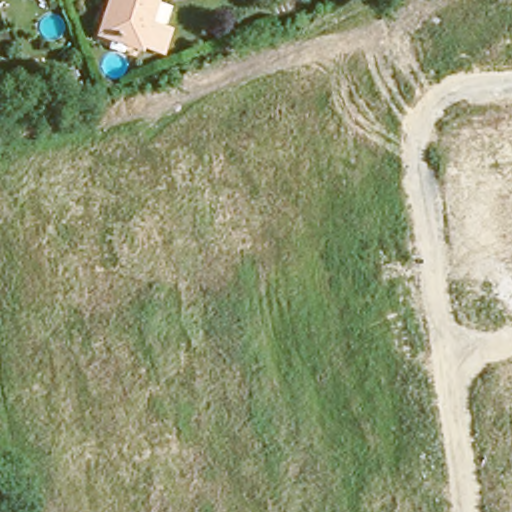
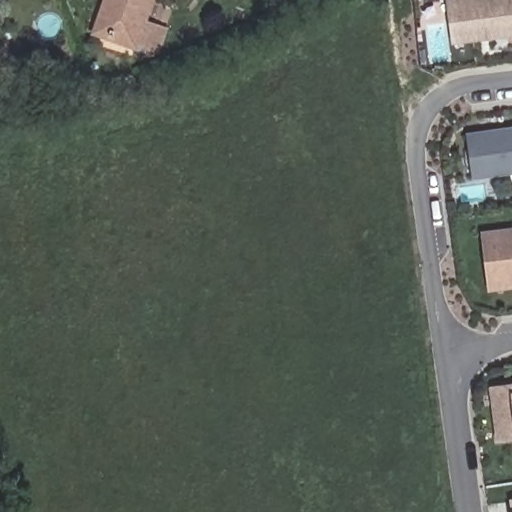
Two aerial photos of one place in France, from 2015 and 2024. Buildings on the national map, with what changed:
unchanged [(162,20),(156,47),(134,42),(134,36),(98,27),(106,0),(143,0),(139,15),(162,20)]
new [(446,0),(512,0),(512,37),(451,44),(446,0)]
new [(467,134),(512,128),(512,176),(473,181),(467,134)]
new [(481,231),(512,228),(512,289),(489,292),(481,231)]
new [(489,386),(512,383),(512,439),(495,440),(489,386)]

